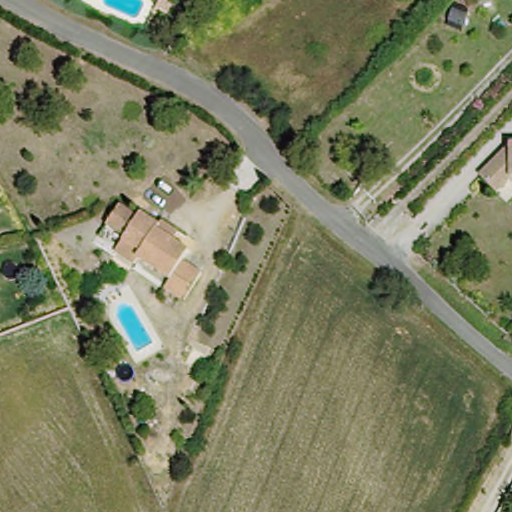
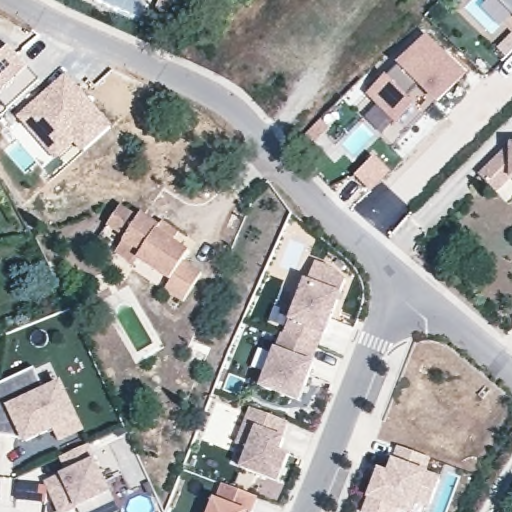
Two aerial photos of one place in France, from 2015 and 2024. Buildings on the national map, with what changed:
new [(498,0),(512,0),(512,14),(498,0)]
new [(468,74),(439,104),(420,86),(409,97),(416,105),(398,123),(366,94),(427,33),(468,74)]
new [(8,45),(30,69),(1,95),(0,96),(0,43),(5,48),(8,45)]
new [(65,72),(111,126),(80,153),(73,145),(56,159),(15,115),(65,72)]
unchanged [(499,197),(482,178),(512,148),(512,184),(499,197)]
unchanged [(113,256),(120,245),(125,238),(106,225),(118,207),(136,219),(141,214),(161,228),(165,224),(184,236),(178,247),(190,254),(185,265),(203,279),(183,307),(165,295),(171,283),(141,267),(136,273),(113,256)]
new [(304,283),(306,284),(313,266),(328,271),(345,285),(325,337),(322,336),(316,349),(284,337),(304,283)]
new [(291,401),(260,389),(274,352),(275,352),(281,336),(284,337),(316,349),(311,366),(313,367),(304,389),(298,404),(291,401)]
new [(62,383),(78,419),(81,429),(61,439),(55,429),(27,442),(0,438),(0,383),(35,369),(45,391),(62,383)]
new [(273,485),(239,472),(246,452),(235,448),(243,428),(249,411),(286,426),(281,441),(283,442),(278,455),(287,459),(282,471),(276,486),(273,485)]
new [(379,466),(384,468),(396,444),(432,458),(428,470),(441,476),(428,509),(417,505),(414,512),(399,512),(398,512),(360,512),(379,466)]
new [(95,459),(113,494),(80,509),(74,512),(53,512),(38,485),(61,474),(64,473),(58,458),(89,445),(95,459)]
new [(213,503),(215,504),(221,488),(255,501),(250,512),(209,512),(213,503)]

